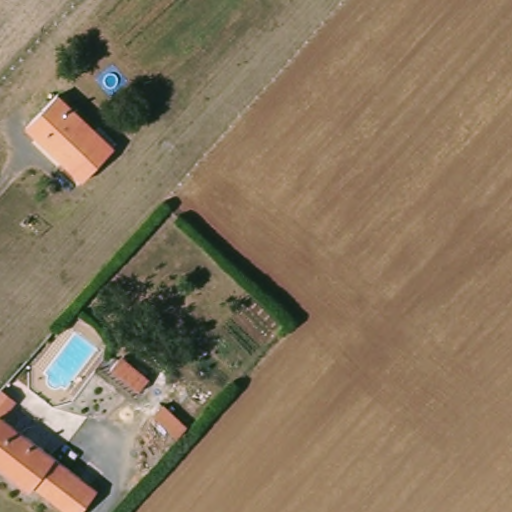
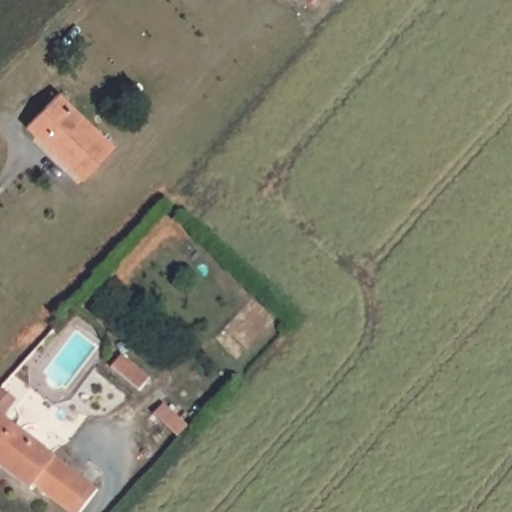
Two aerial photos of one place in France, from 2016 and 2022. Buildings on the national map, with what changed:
unchanged [(80,179),(67,166),(26,126),(56,95),(97,135),(111,148),(80,179)]
unchanged [(134,362),(127,371),(117,363),(124,354),(134,362)]
unchanged [(2,416),(58,461),(34,486),(31,490),(0,465),(0,419),(2,416)]
unchanged [(78,512),(66,512),(34,486),(58,461),(95,491),(78,512)]

